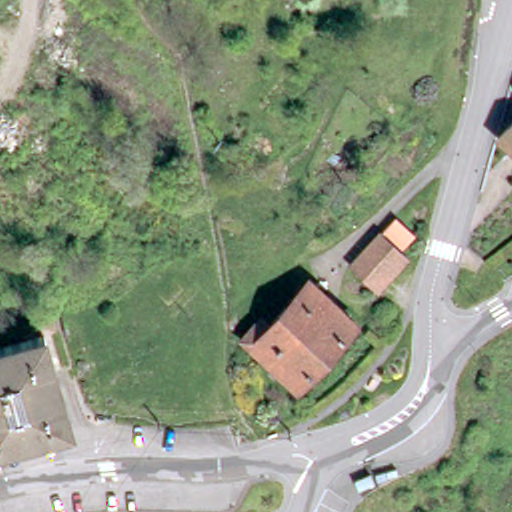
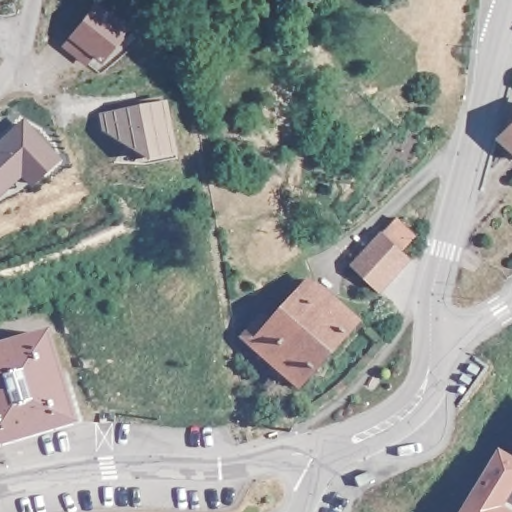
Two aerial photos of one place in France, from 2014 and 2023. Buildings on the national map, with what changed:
new [(93,57),(86,66),(61,47),(97,1),(128,25),(99,62),(93,57)]
new [(166,102),(176,159),(146,164),(101,135),(98,117),(166,102)]
new [(63,161),(32,191),(21,180),(0,199),(0,142),(24,121),(63,161)]
unchanged [(512,148),(505,142),(512,134),(512,148)]
unchanged [(383,292),(354,270),(381,235),(394,219),(413,235),(401,250),(409,257),(383,292)]
unchanged [(279,382),(284,375),(253,347),(274,324),(282,332),(319,288),(365,331),(308,395),(291,380),(286,387),(279,382)]
unchanged [(71,430),(0,450),(0,352),(46,340),(71,430)]
new [(497,460),(512,471),(512,470),(512,512),(465,512),(497,460)]
demolished [(355,512),(340,512),(341,501),(355,501),(355,512)]

